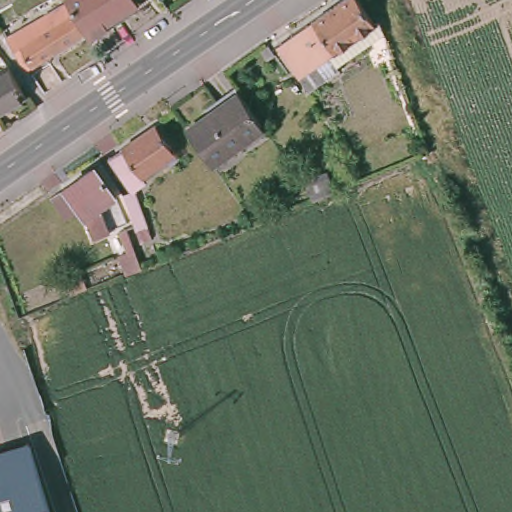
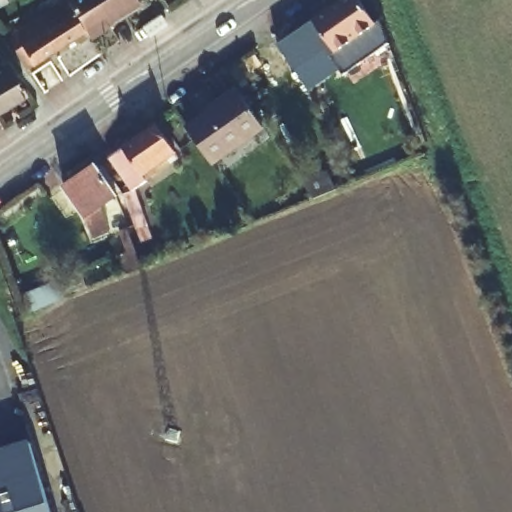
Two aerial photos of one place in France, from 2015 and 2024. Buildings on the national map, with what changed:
unchanged [(138,5),(105,25),(107,29),(90,40),(65,0),(136,0),(138,5)]
unchanged [(274,56),(285,48),(350,2),(370,33),(374,31),(378,44),(333,76),(326,65),(306,79),(296,86),(274,56)]
unchanged [(84,34),(24,70),(8,45),(4,38),(65,3),(84,34)]
unchanged [(27,88),(1,103),(0,104),(0,65),(7,61),(27,88)]
unchanged [(208,165),(185,131),(238,97),(261,130),(208,165)]
unchanged [(135,180),(140,185),(148,235),(139,237),(131,191),(109,156),(153,126),(173,154),(163,161),(135,180)]
unchanged [(90,211),(76,220),(56,189),(70,180),(98,161),(119,192),(106,201),(113,227),(96,234),(90,211)]
unchanged [(114,253),(123,250),(118,226),(125,225),(137,265),(118,271),(114,253)]
unchanged [(44,512),(0,512),(0,451),(22,444),(44,512)]

